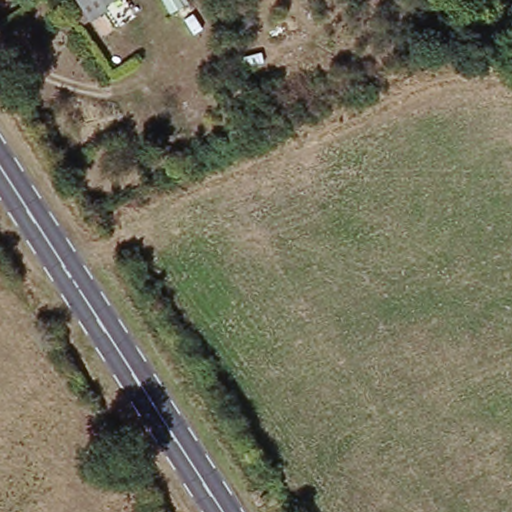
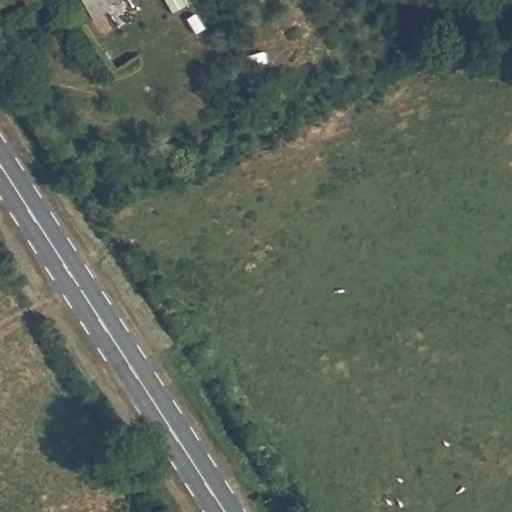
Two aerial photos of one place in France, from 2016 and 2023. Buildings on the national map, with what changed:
unchanged [(81,0),(125,0),(126,1),(97,23),(81,0)]

